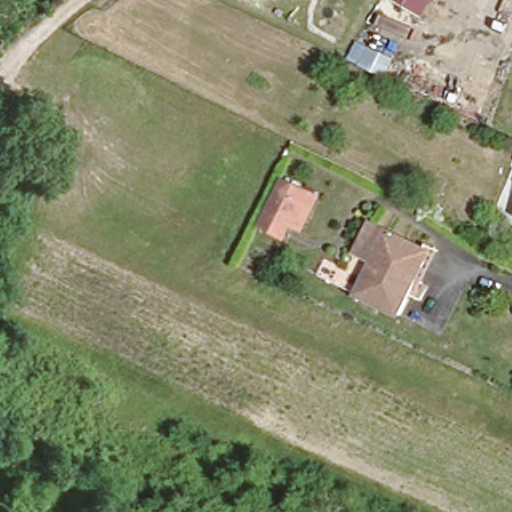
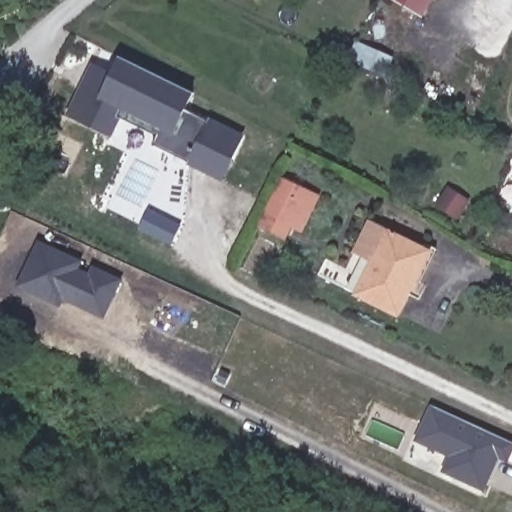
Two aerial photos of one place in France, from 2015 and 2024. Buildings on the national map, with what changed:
unchanged [(396,0),(434,0),(424,17),(396,0)]
new [(110,139),(68,120),(91,69),(112,79),(120,61),(193,95),(185,111),(243,139),(232,161),(198,145),(195,153),(183,148),(177,160),(153,149),(157,140),(118,123),(110,139)]
new [(183,148),(195,153),(198,145),(232,161),(223,182),(177,160),(183,148)]
unchanged [(301,232),(292,228),(287,239),(261,228),(283,180),(309,193),(318,197),(301,232)]
unchanged [(355,253),(369,224),(428,253),(398,315),(357,295),(373,262),(355,253)]
new [(79,259),(76,264),(90,271),(97,267),(123,279),(105,319),(63,300),(59,308),(17,288),(39,240),(79,259)]
new [(447,458),(415,442),(429,404),(512,443),(512,454),(507,464),(498,459),(484,492),(441,473),(447,458)]

